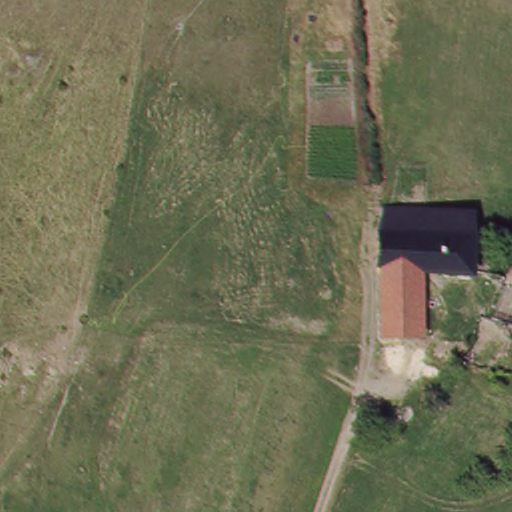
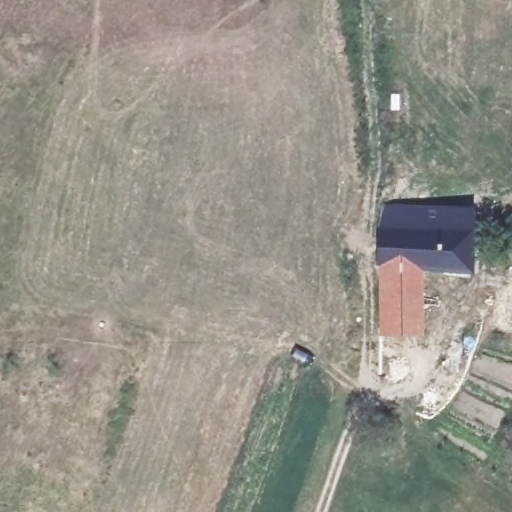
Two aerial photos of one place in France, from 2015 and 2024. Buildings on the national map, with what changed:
unchanged [(390,227),(395,227),(397,205),(436,210),(480,215),(472,270),(428,264),(391,260),(390,227)]
unchanged [(428,264),(424,331),(385,327),(391,260),(428,264)]

